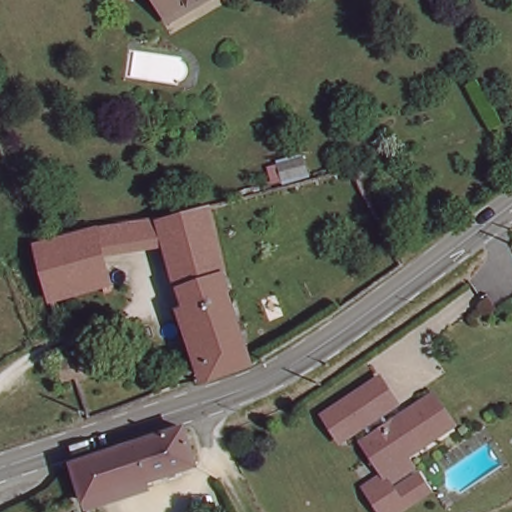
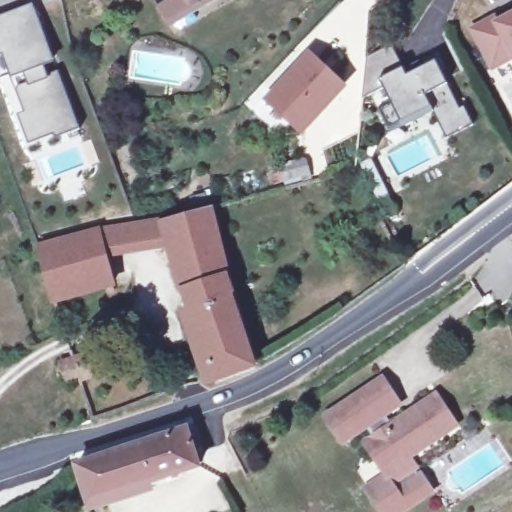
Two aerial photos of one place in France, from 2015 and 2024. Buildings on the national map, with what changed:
unchanged [(153,0),(207,0),(186,13),(167,24),(163,16),(153,0)]
new [(28,143),(17,115),(24,111),(16,91),(18,87),(27,84),(24,74),(11,78),(3,55),(0,55),(0,17),(33,5),(54,63),(44,68),(49,79),(59,75),(78,129),(56,138),(55,134),(28,143)]
new [(469,29),(496,14),(496,20),(512,11),(512,60),(490,71),(469,29)]
new [(433,112),(404,126),(389,131),(379,108),(391,101),(384,88),(362,97),(365,58),(392,46),(401,69),(406,77),(436,63),(446,83),(461,109),(464,107),(474,125),(447,137),(433,112)]
new [(301,134),(263,99),(309,51),(347,88),(301,134)]
unchanged [(210,212),(251,369),(211,382),(183,297),(180,298),(167,253),(159,223),(210,212)]
unchanged [(159,223),(167,253),(105,263),(98,232),(159,223)]
unchanged [(98,232),(105,263),(111,290),(53,305),(36,249),(98,232)]
unchanged [(111,346),(117,364),(91,374),(90,371),(81,374),(75,358),(85,354),(111,346)]
unchanged [(420,490),(386,511),(368,481),(387,469),(366,435),(374,429),(369,421),(346,434),(329,408),(362,388),(383,375),(400,401),(385,410),(391,419),(437,391),(454,419),(405,449),(419,472),(427,486),(420,490)]
unchanged [(191,431),(204,469),(94,507),(83,468),(191,431)]

